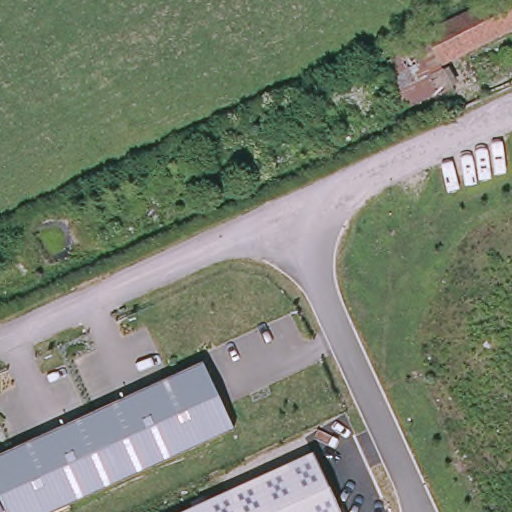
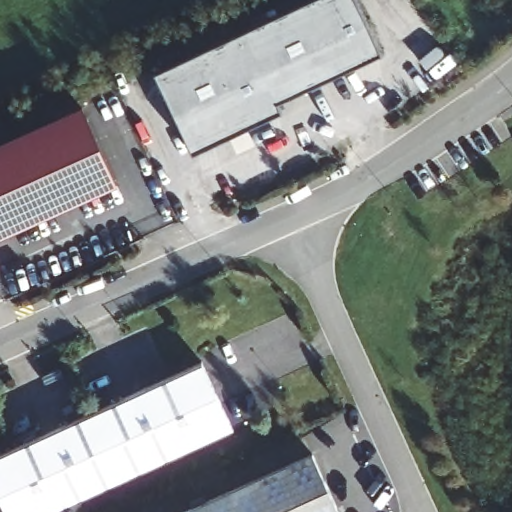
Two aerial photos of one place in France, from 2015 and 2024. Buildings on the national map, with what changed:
new [(292,0),(356,0),(375,47),(272,97),(279,108),(188,148),(153,68),(292,0)]
demolished [(424,32),(424,30),(484,0),(512,0),(512,24),(441,60),(454,87),(439,96),(436,90),(409,39),(424,32)]
demolished [(500,54),(507,67),(501,71),(494,57),(500,54)]
demolished [(500,92),(491,97),(488,91),(512,80),(512,87),(500,92)]
new [(124,174),(0,229),(0,139),(86,100),(124,174)]
unchanged [(46,512),(7,512),(0,496),(0,452),(203,362),(232,428),(46,512)]
unchanged [(338,512),(182,512),(311,453),(338,512)]

